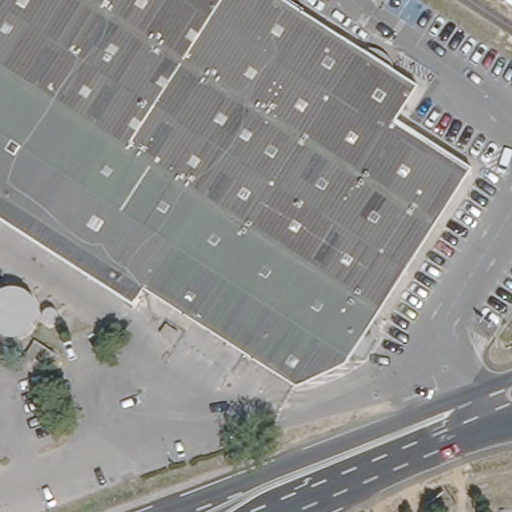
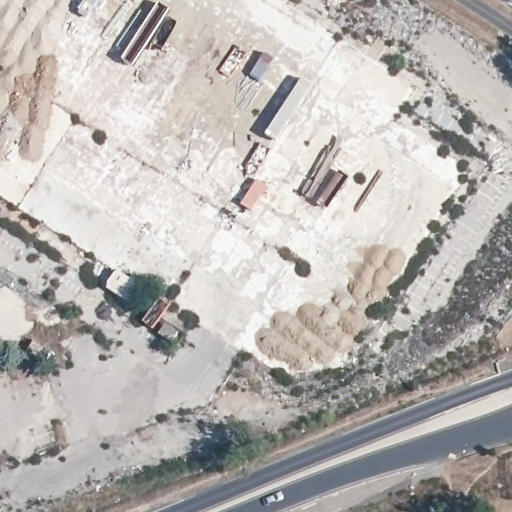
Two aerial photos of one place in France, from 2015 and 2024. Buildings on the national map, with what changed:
demolished [(475,171),(454,204),(437,230),(345,368),(297,385),(229,341),(147,288),(136,305),(0,220),(0,0),(284,0),(418,86),(395,121),(475,171)]
demolished [(22,361),(34,342),(48,320),(66,331),(52,353),(39,373),(22,361)]
demolished [(176,332),(170,341),(158,333),(164,325),(176,332)]

